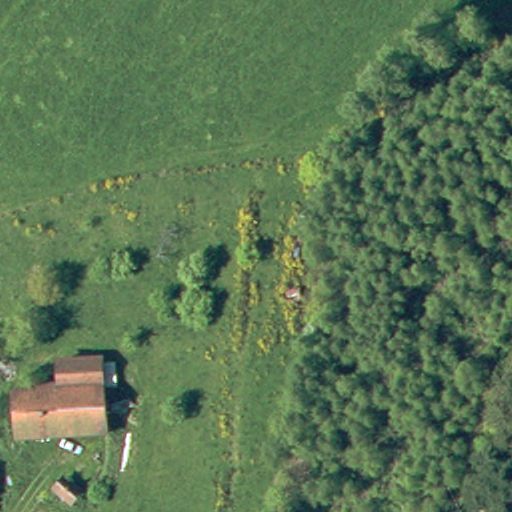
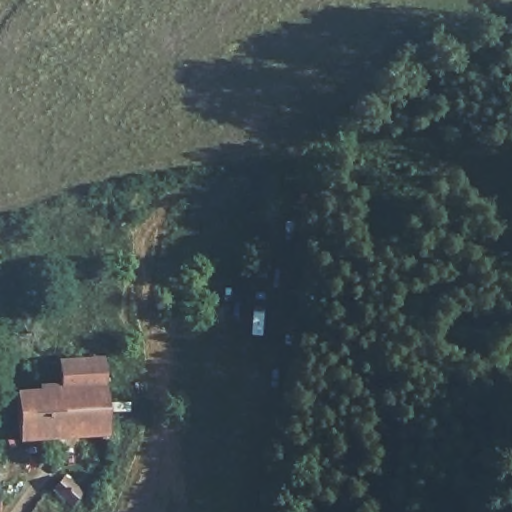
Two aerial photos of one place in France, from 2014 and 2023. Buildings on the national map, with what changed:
unchanged [(19,392),(43,391),(43,386),(67,386),(66,363),(106,361),(107,436),(20,437),(19,392)]
unchanged [(68,506),(55,493),(65,483),(91,507),(87,512),(82,512),(75,506),(68,506)]

